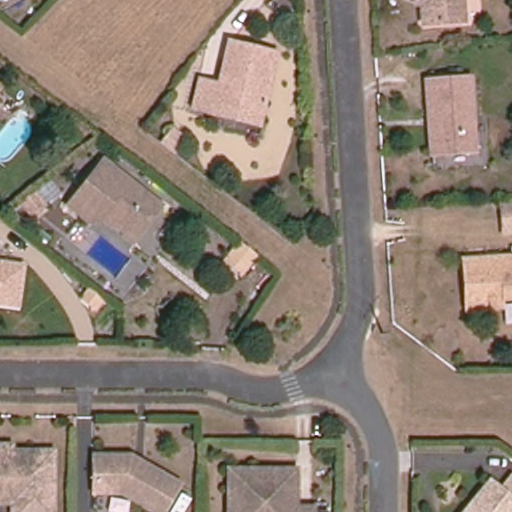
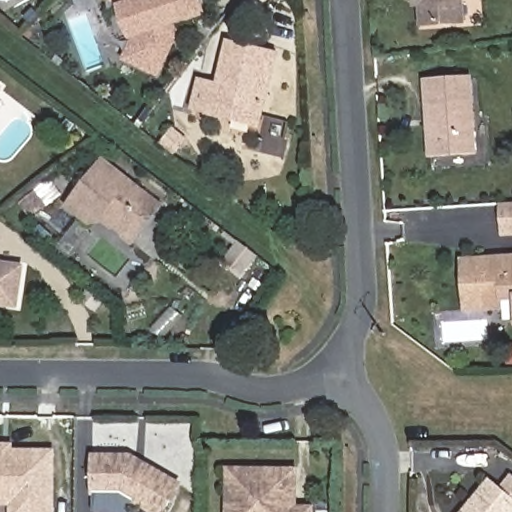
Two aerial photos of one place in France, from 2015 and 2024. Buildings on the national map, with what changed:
new [(182,34),(161,77),(122,59),(132,36),(121,5),(109,0),(202,0),(208,15),(179,26),(182,34)]
unchanged [(425,24),(423,0),(464,0),(465,22),(425,24)]
unchanged [(264,116),(225,106),(223,116),(211,113),(212,111),(196,107),(203,81),(221,85),(231,42),(279,53),(264,116)]
unchanged [(436,125),(434,101),(430,101),(428,82),(472,79),(477,152),(433,155),(431,125),(436,125)]
unchanged [(1,97),(0,98),(0,97),(1,97)]
unchanged [(107,218),(101,225),(91,227),(70,210),(105,166),(162,210),(137,242),(107,218)]
unchanged [(31,191),(40,203),(26,214),(17,202),(31,191)]
unchanged [(503,208),(512,207),(512,238),(505,238),(503,208)]
unchanged [(486,308),(469,309),(466,260),(512,257),(512,298),(485,299),(486,308)]
unchanged [(21,306),(0,304),(0,261),(26,263),(21,306)]
unchanged [(16,443),(15,450),(58,449),(56,512),(10,512),(10,508),(0,508),(0,444),(16,443)]
unchanged [(164,512),(157,512),(123,492),(95,492),(96,455),(133,455),(133,460),(140,464),(142,461),(181,483),(164,512)]
unchanged [(296,475),(295,500),(292,500),(292,510),(295,510),(295,512),(244,512),(244,497),(230,497),(231,475),(296,475)]
unchanged [(512,494),(512,512),(462,512),(491,477),(512,494)]

